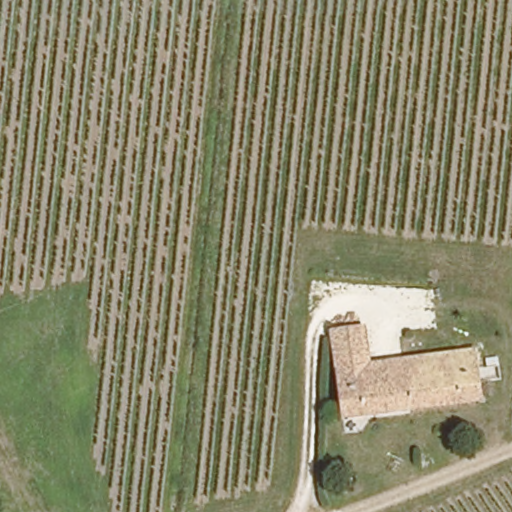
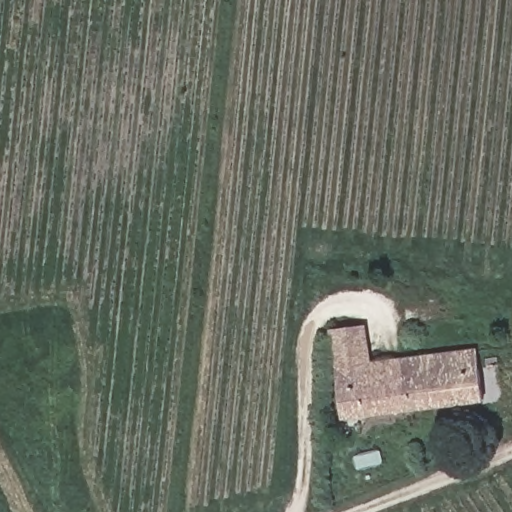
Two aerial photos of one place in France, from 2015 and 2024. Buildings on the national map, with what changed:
unchanged [(339,368),(330,329),(366,324),(371,363),(339,368)]
unchanged [(339,368),(477,347),(482,398),(344,416),(339,368)]

